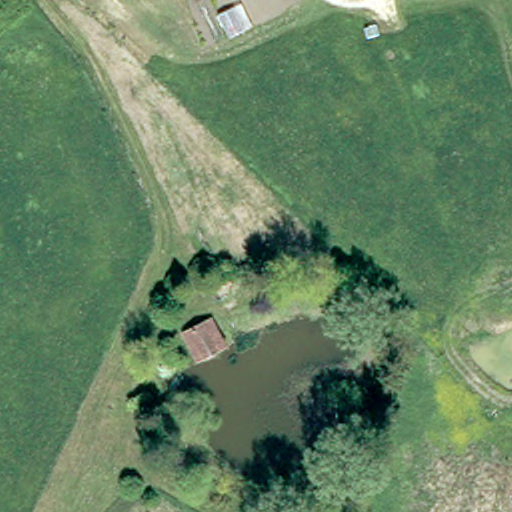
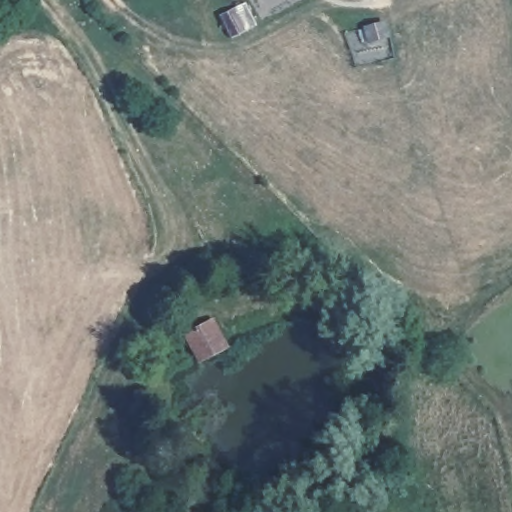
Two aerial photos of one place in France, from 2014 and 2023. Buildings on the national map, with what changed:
unchanged [(211,314),(226,351),(191,362),(179,331),(211,314)]

